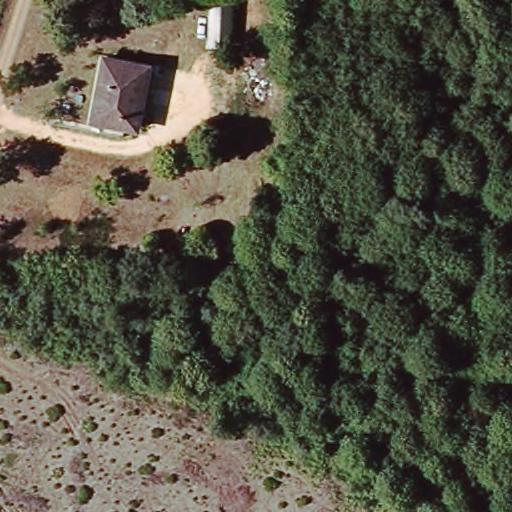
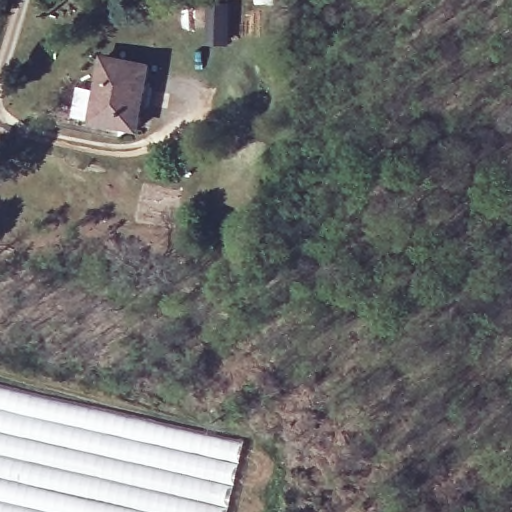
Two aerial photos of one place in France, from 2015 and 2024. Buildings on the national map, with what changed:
unchanged [(110,61),(154,68),(142,139),(99,132),(110,61)]
new [(246,440),(229,512),(0,512),(0,386),(62,401),(246,440)]

